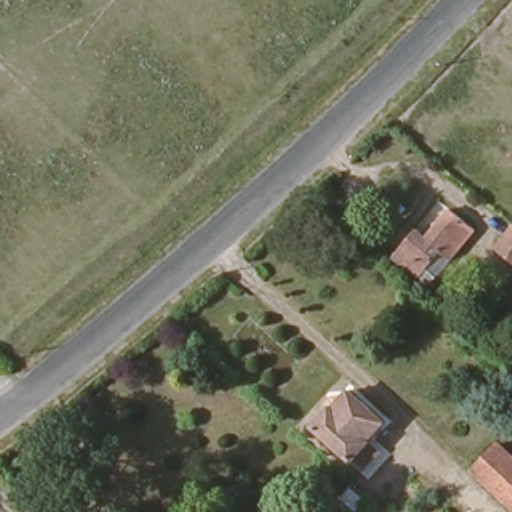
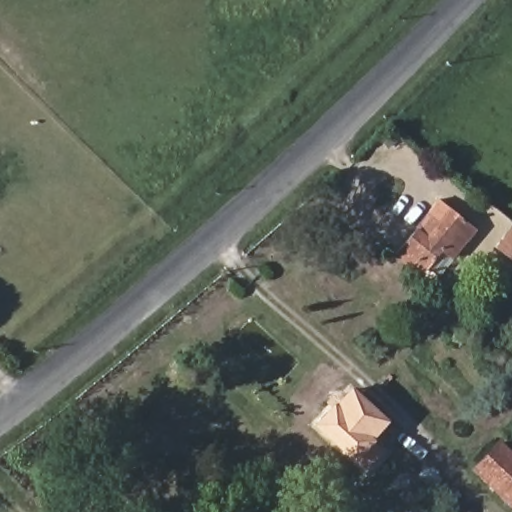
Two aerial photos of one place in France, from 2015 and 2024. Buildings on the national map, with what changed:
unchanged [(417,227),(426,232),(452,205),(479,225),(454,257),(444,249),(421,275),(396,254),(417,227)]
unchanged [(498,250),(512,233),(512,262),(498,250)]
unchanged [(309,430),(326,410),(330,412),(346,395),(377,422),(360,441),(375,453),(358,473),(309,430)]
unchanged [(498,442),(512,455),(512,503),(474,467),(498,442)]

